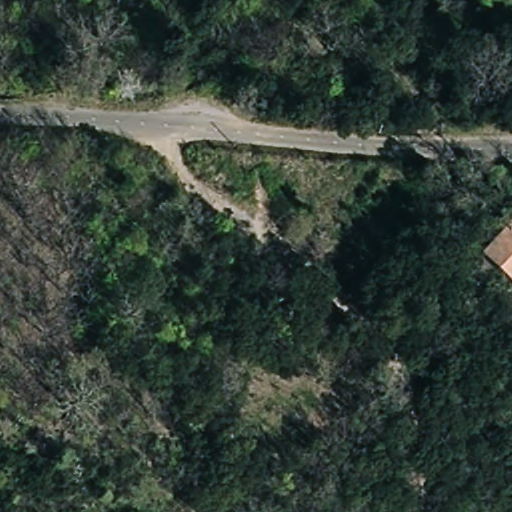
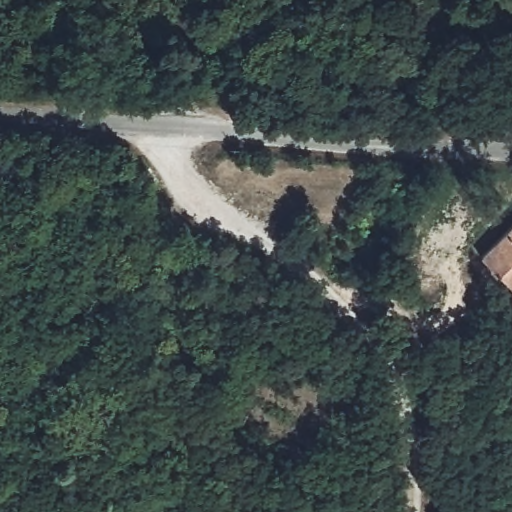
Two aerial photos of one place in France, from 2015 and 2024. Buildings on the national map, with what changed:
unchanged [(512,220),(512,286),(477,255),(512,220)]

